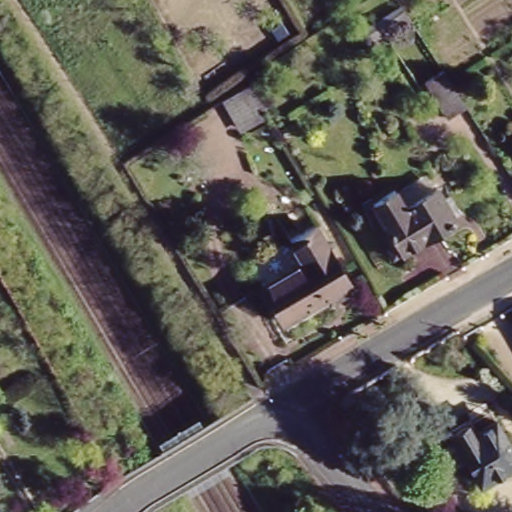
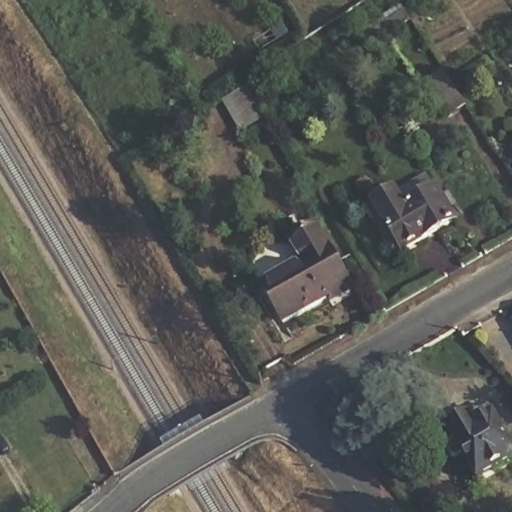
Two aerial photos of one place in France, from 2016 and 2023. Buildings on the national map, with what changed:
unchanged [(410,14),(368,40),(363,31),(405,6),(410,14)]
unchanged [(465,100),(449,111),(425,74),(442,63),(465,100)]
unchanged [(267,117),(240,134),(223,106),(222,105),(250,88),(267,117)]
unchanged [(512,142),(511,141),(512,141),(512,142)]
unchanged [(365,212),(374,207),(393,195),(402,210),(435,190),(455,222),(403,254),(393,260),(365,212)]
unchanged [(263,291),(273,285),(305,267),(292,246),(317,231),(352,286),(293,321),(285,326),(263,291)]
unchanged [(465,460),(457,464),(452,462),(446,452),(447,445),(455,442),(448,430),(487,408),(512,452),(512,464),(478,483),(468,465),(465,460)]

